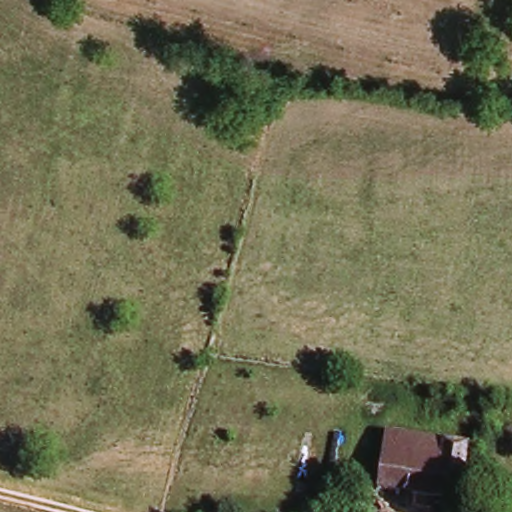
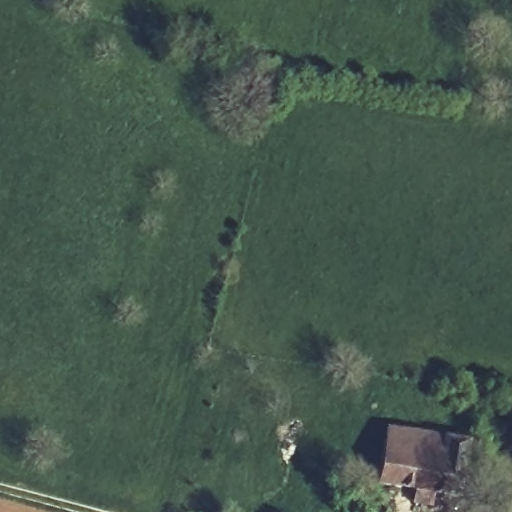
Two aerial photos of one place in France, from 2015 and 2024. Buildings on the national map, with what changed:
unchanged [(382,485),(391,429),(471,442),(461,497),(382,485)]

